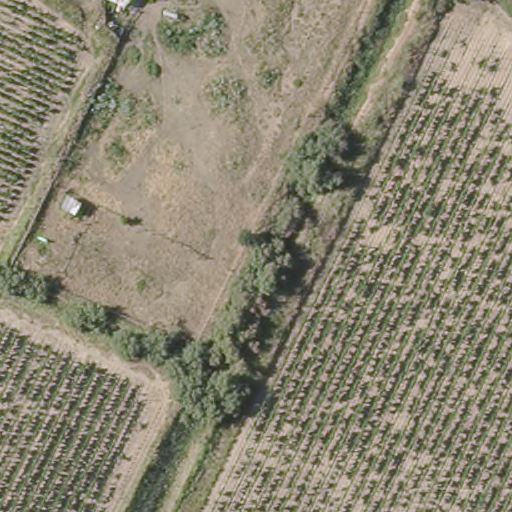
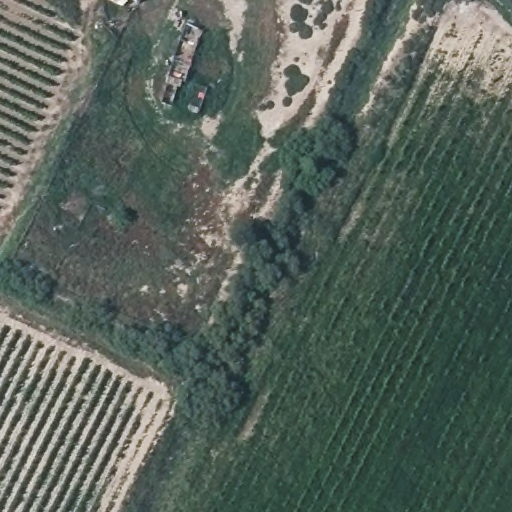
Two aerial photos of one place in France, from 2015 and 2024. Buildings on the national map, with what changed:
unchanged [(122,9),(104,0),(126,0),(122,9)]

